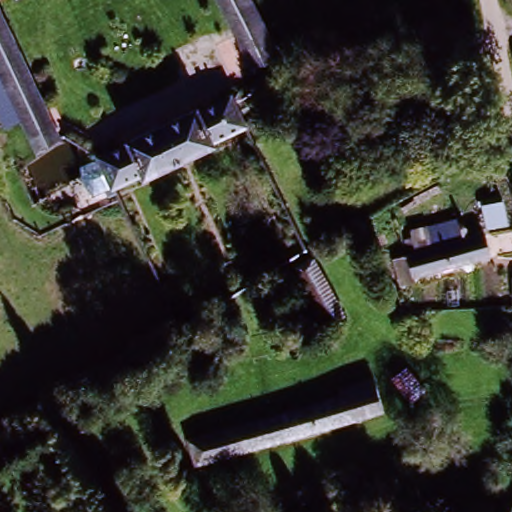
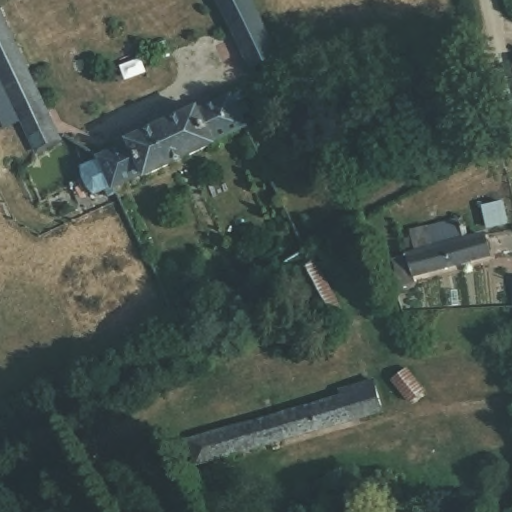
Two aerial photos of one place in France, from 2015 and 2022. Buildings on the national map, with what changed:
unchanged [(254,68),(219,0),(251,0),(278,55),(254,68)]
unchanged [(0,8),(62,145),(42,155),(30,128),(0,65),(0,8)]
unchanged [(206,111),(238,96),(251,126),(220,141),(206,111)]
unchanged [(136,140),(205,108),(206,111),(220,141),(220,144),(211,148),(153,175),(151,171),(137,141),(136,140)]
unchanged [(105,156),(137,141),(151,171),(120,187),(105,156)]
unchanged [(485,232),(482,209),(510,204),(512,218),(512,230),(485,232)]
unchanged [(401,264),(415,260),(410,238),(432,232),(460,225),(466,245),(485,239),(491,258),(420,281),(422,287),(410,290),(401,264)]
unchanged [(313,261),(341,314),(325,322),(295,270),(313,261)]
unchanged [(406,368),(424,391),(408,402),(391,380),(406,368)]
unchanged [(277,422),(330,406),(344,402),(372,394),(379,416),(350,424),(286,445),(277,422)]
unchanged [(201,472),(195,449),(277,422),(286,445),(201,472)]

